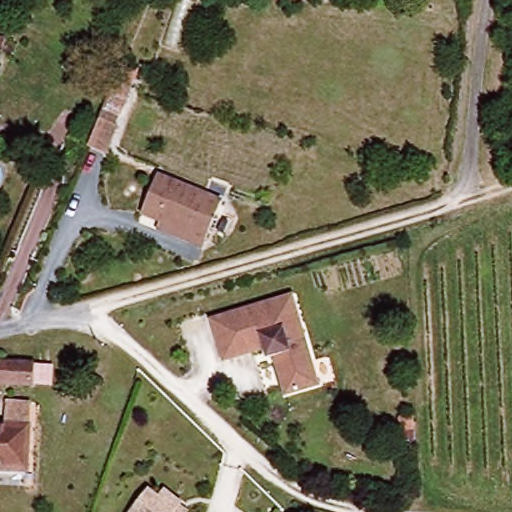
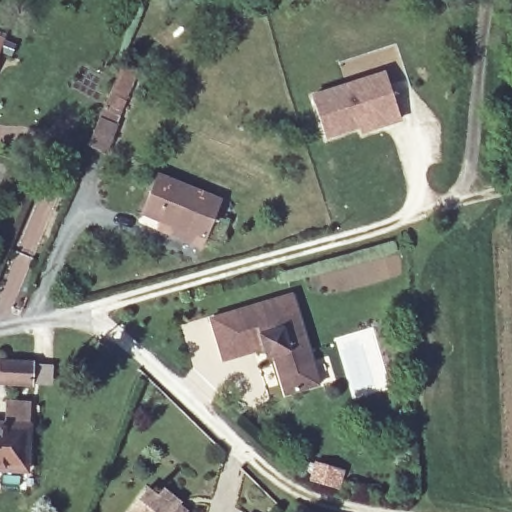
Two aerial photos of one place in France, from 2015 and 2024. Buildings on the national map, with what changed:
unchanged [(0,57),(0,35),(7,38),(0,57)]
unchanged [(88,145),(100,117),(99,116),(122,62),(122,63),(137,69),(125,101),(126,101),(116,124),(105,152),(88,145)]
new [(311,95),(385,73),(400,121),(361,133),(358,129),(325,139),(311,95)]
unchanged [(155,229),(159,221),(140,213),(157,174),(220,201),(204,240),(200,248),(155,229)]
unchanged [(320,386),(286,395),(275,352),(268,349),(225,360),(214,318),(295,296),(320,386)]
unchanged [(36,390),(4,388),(5,368),(37,369),(36,390)]
unchanged [(0,427),(13,428),(14,406),(37,408),(35,430),(32,475),(0,472),(0,427)]
unchanged [(150,488),(160,497),(165,489),(182,503),(180,506),(187,512),(130,512),(150,488)]

